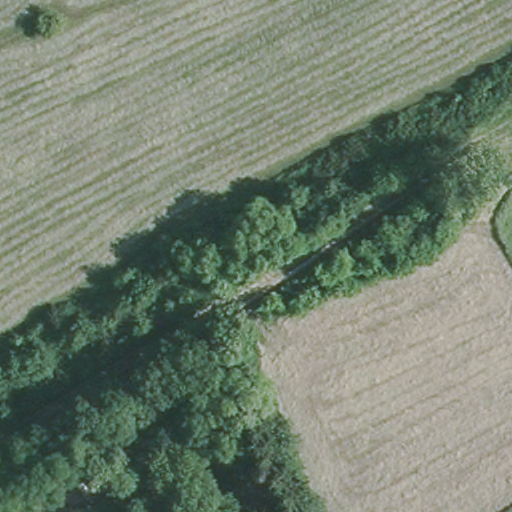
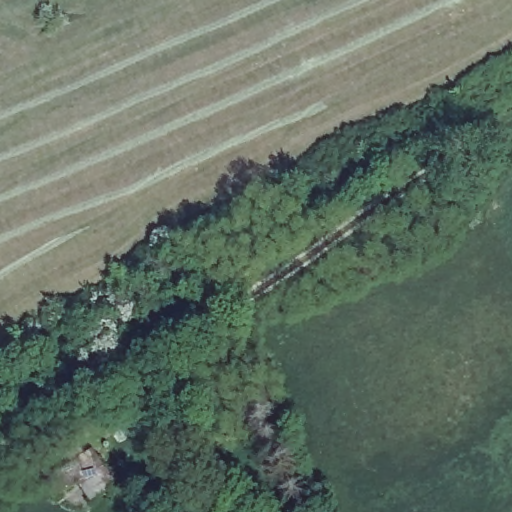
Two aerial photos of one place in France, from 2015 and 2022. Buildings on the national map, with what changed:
unchanged [(66,456),(80,447),(85,455),(91,451),(113,484),(96,496),(83,477),(55,497),(46,483),(72,464),(66,456)]

